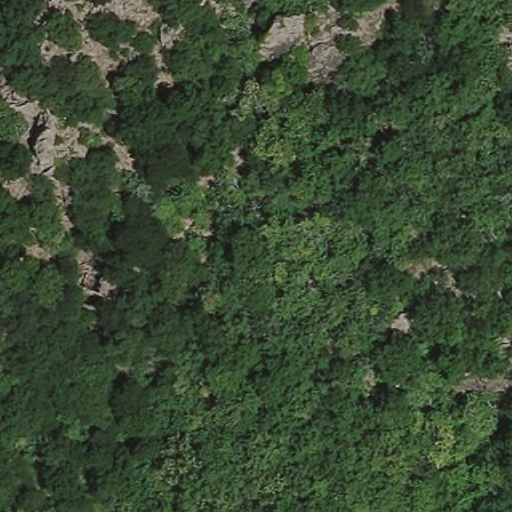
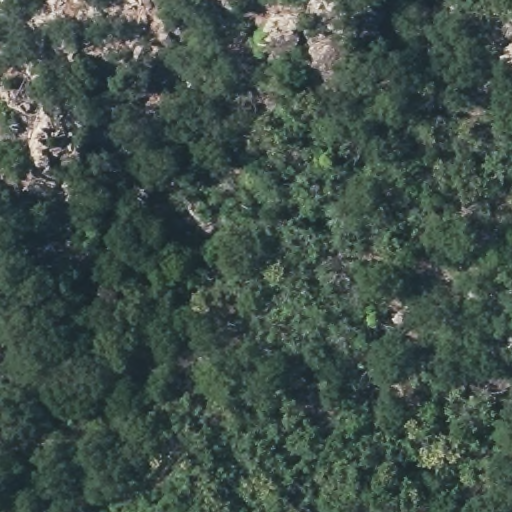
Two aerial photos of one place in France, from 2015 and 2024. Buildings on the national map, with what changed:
unchanged [(0,258),(0,250),(24,194),(62,212),(35,274),(0,258)]
unchanged [(110,319),(80,309),(95,267),(126,279),(110,319)]

